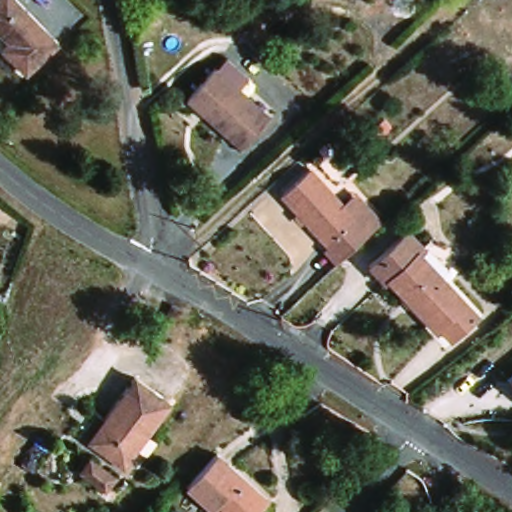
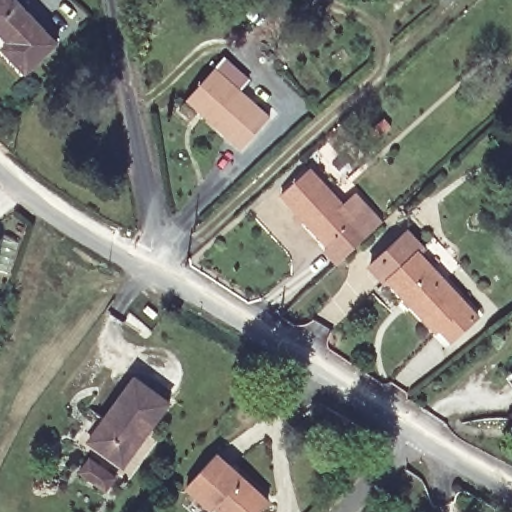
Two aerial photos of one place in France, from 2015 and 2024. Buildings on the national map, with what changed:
unchanged [(5,0),(25,0),(71,40),(42,73),(15,50),(22,43),(0,24),(0,5),(5,0)]
unchanged [(262,76),(252,85),(285,115),(258,150),(197,99),(238,54),(262,76)]
unchanged [(323,171),(357,207),(369,195),(381,208),(393,220),(351,258),(293,199),(323,171)]
unchanged [(492,308),(493,310),(464,337),(453,325),(445,332),(381,264),(418,230),(492,308)]
unchanged [(184,399),(137,464),(102,438),(148,373),(184,399)]
unchanged [(230,452),(282,497),(269,512),(229,512),(200,486),(230,452)]
unchanged [(120,475),(107,493),(106,494),(76,476),(89,457),(120,475)]

